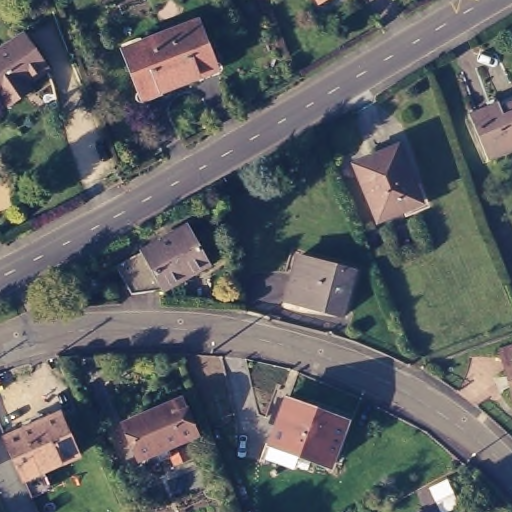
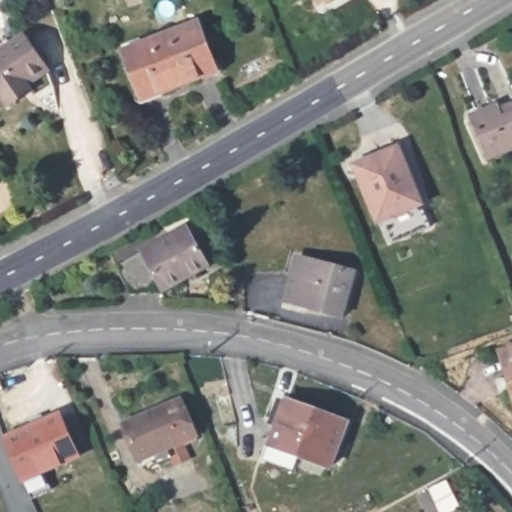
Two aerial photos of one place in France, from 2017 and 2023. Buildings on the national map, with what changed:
unchanged [(327,0),(323,2),(322,0),(327,0)]
unchanged [(162,38),(198,25),(216,70),(180,84),(162,38)]
unchanged [(5,102),(0,94),(0,51),(24,35),(46,68),(25,82),(28,86),(31,91),(8,106),(5,102)]
unchanged [(143,97),(126,51),(162,38),(180,84),(143,97)]
unchanged [(489,161),(472,121),(496,111),(497,114),(512,109),(512,151),(489,161)]
unchanged [(355,166),(395,148),(418,201),(378,219),(355,166)]
unchanged [(123,269),(138,259),(183,233),(207,271),(166,296),(153,296),(140,297),(123,269)]
unchanged [(340,318),(285,302),(293,273),(298,259),(325,267),(330,269),(352,276),(345,305),(340,318)]
unchanged [(512,344),(512,379),(500,349),(512,344)]
unchanged [(155,407),(165,403),(181,396),(196,431),(168,443),(172,452),(158,458),(155,449),(138,455),(124,420),(155,407)]
unchanged [(275,448),(281,430),(272,427),(282,401),(350,426),(333,469),(275,448)]
unchanged [(83,456),(28,480),(10,439),(38,426),(35,420),(46,415),(49,421),(65,414),(83,456)]

